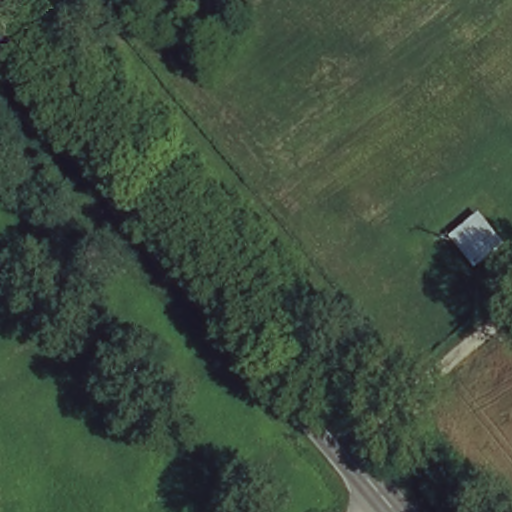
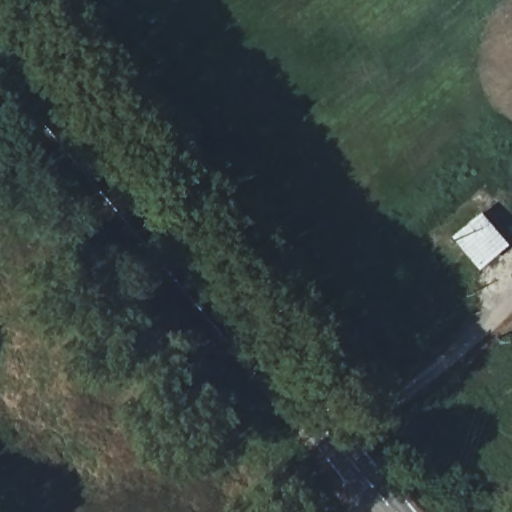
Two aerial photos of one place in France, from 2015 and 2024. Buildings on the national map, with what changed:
unchanged [(479,263),(454,234),(483,214),(506,243),(479,263)]

